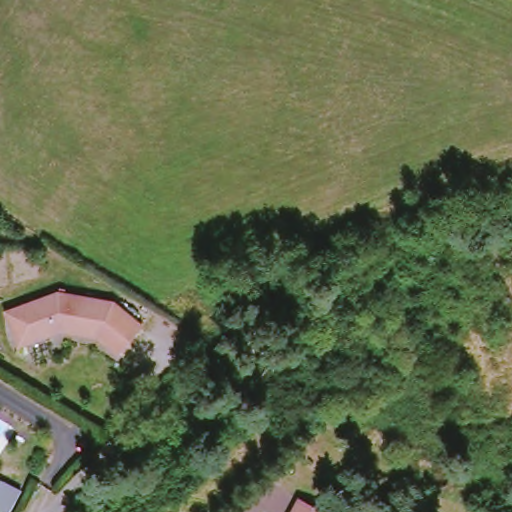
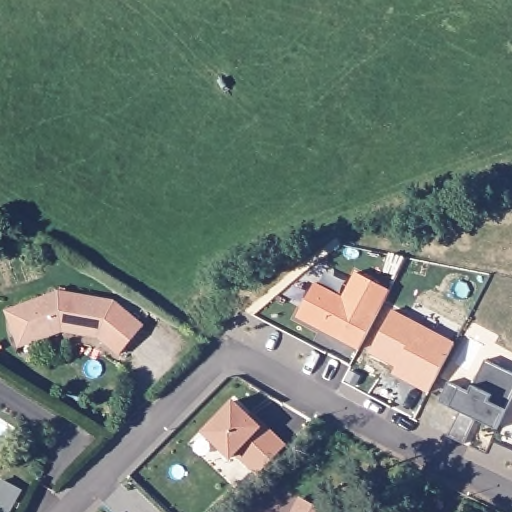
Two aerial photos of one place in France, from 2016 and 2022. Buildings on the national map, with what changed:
new [(316,284),(344,299),(357,274),(390,292),(360,351),(298,318),(316,284)]
unchanged [(125,355),(104,338),(67,332),(25,348),(12,314),(64,294),(119,303),(148,327),(125,355)]
new [(371,353),(392,312),(455,344),(429,393),(414,384),(394,374),(397,367),(417,378),(371,353)]
new [(512,399),(497,430),(475,420),(464,444),(447,437),(460,412),(439,403),(449,382),(470,393),(486,360),(512,373),(512,399)]
new [(234,402),(260,427),(264,424),(287,447),(259,475),(237,453),(232,459),(205,433),(234,402)]
unchanged [(309,504),(323,512),(304,512),(309,504)]

